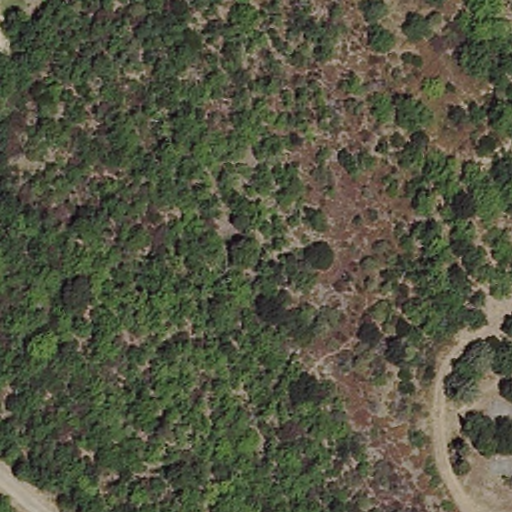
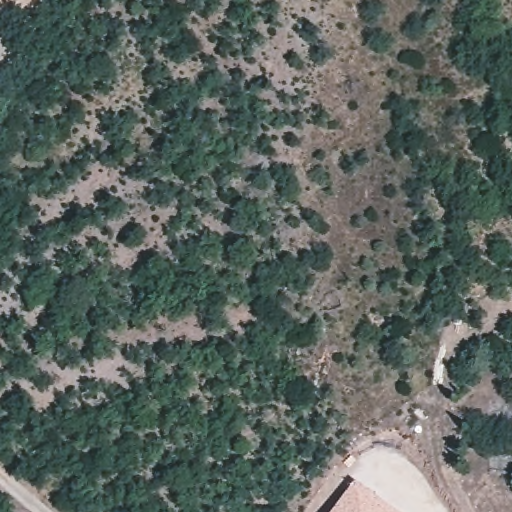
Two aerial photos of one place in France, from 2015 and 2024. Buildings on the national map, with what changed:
new [(357,480),(400,512),(334,512),(357,480)]

